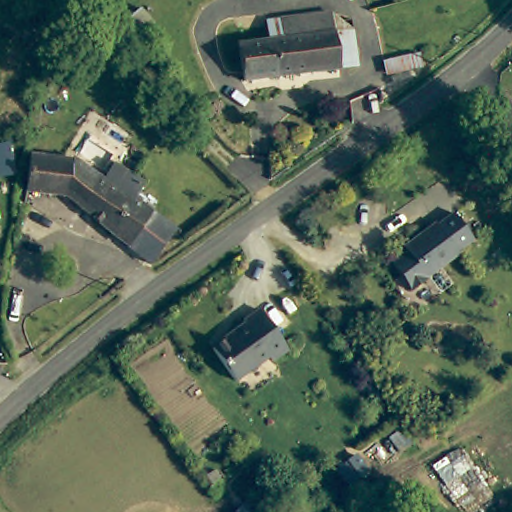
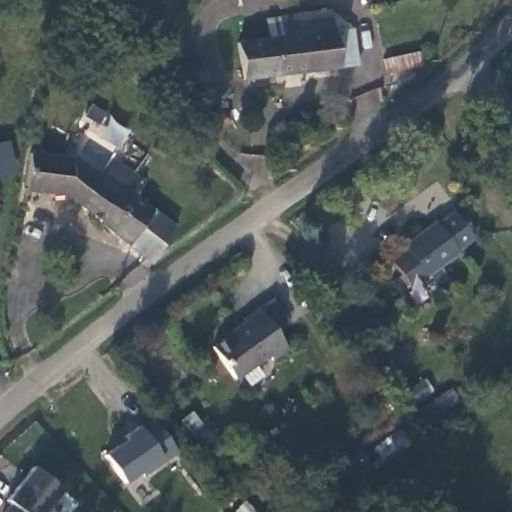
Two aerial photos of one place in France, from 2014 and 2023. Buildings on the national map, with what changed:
unchanged [(268,38),(266,17),(280,16),(328,11),(351,29),(353,64),(333,66),(333,70),(240,80),(239,63),(237,42),(262,39),(268,38)]
unchanged [(417,61),(423,73),(390,86),(386,73),(417,61)]
unchanged [(34,152),(77,155),(105,176),(120,160),(146,181),(135,196),(187,236),(175,249),(170,245),(151,261),(68,192),(28,189),(34,152)]
unchanged [(409,248),(406,244),(440,220),(442,222),(456,211),(476,238),(429,274),(431,276),(416,287),(394,259),(409,248)]
unchanged [(0,225),(0,221),(1,224),(0,225)]
unchanged [(234,332),(232,330),(245,320),(244,318),(259,308),(288,347),(274,358),(271,354),(236,380),(212,347),(234,332)]
unchanged [(389,437),(451,388),(461,402),(400,452),(389,437)]
new [(126,439),(125,436),(138,426),(144,431),(156,422),(178,453),(144,477),(141,472),(125,484),(105,455),(126,439)]
new [(12,503),(7,499),(33,466),(62,490),(45,512),(5,512),(12,503)]

